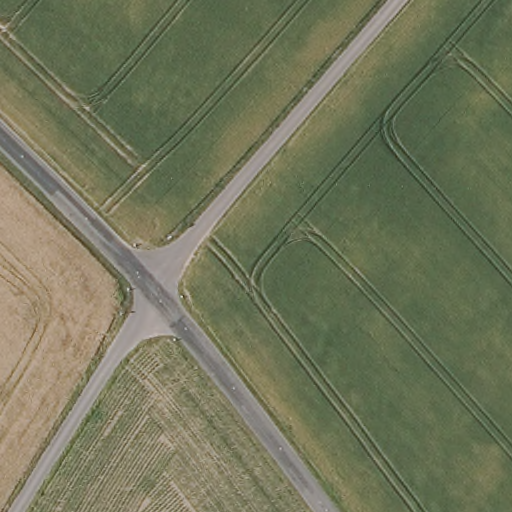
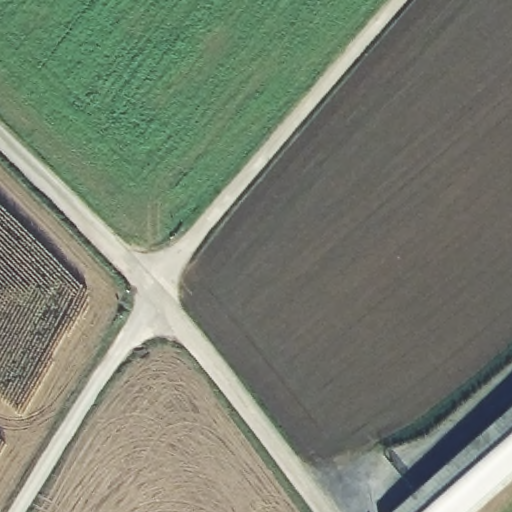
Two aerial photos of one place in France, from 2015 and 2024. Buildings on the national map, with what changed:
new [(394,512),(512,408),(512,475),(470,512),(394,512)]

